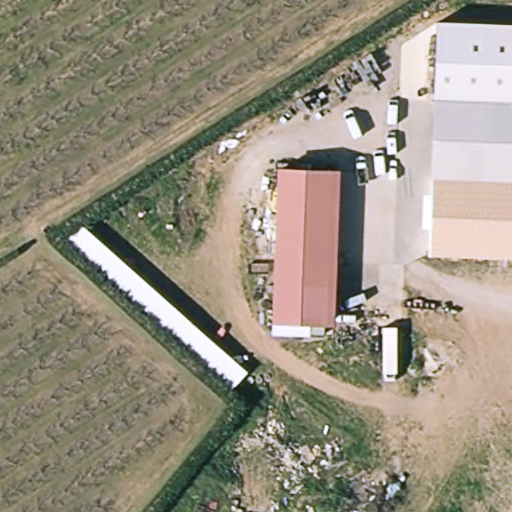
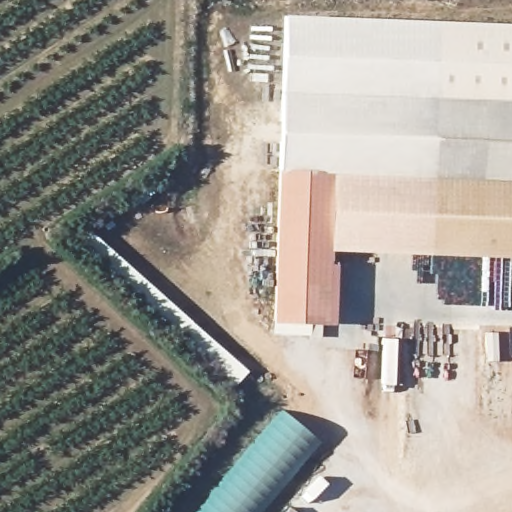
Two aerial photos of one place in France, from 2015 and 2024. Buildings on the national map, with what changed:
new [(434,96),(431,254),(334,249),(334,243),(336,167),(283,165),(278,166),(285,16),(438,21),(434,96)]
unchanged [(434,96),(438,21),(512,24),(512,100),(434,96)]
unchanged [(431,254),(434,96),(512,100),(512,257),(431,254)]
unchanged [(336,167),(334,243),(331,310),(331,318),(324,318),(276,316),(281,196),(283,165),(336,167)]
new [(233,386),(75,245),(89,230),(248,371),(233,386)]
new [(285,412),(321,443),(264,512),(202,512),(285,412)]

